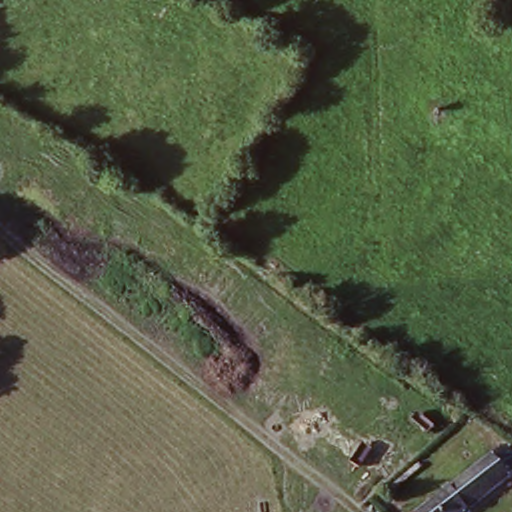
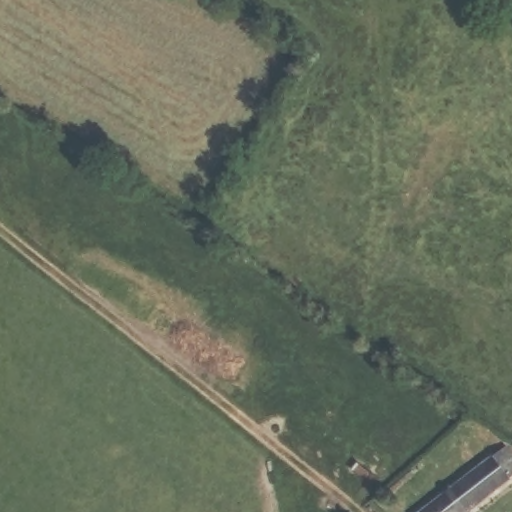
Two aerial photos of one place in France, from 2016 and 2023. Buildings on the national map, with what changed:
unchanged [(512,454),(512,478),(470,512),(424,512),(506,446),(512,454)]

